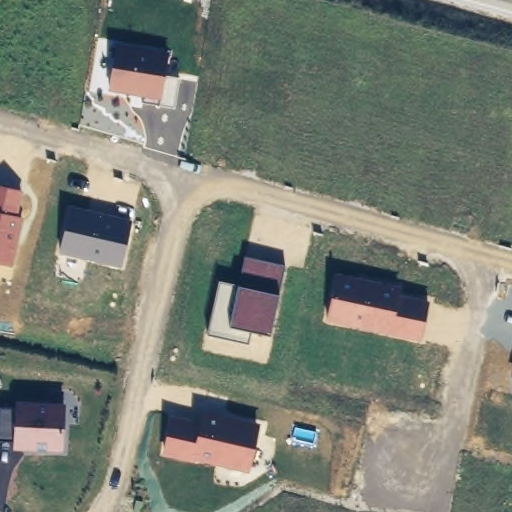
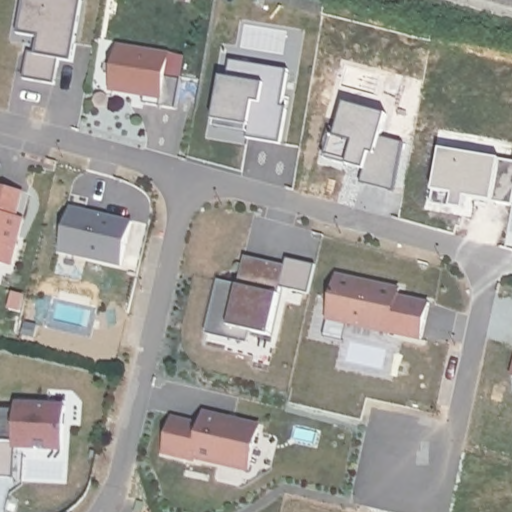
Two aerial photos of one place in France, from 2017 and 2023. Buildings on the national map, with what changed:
new [(26,0),(80,0),(71,57),(63,56),(59,81),(27,75),(32,48),(39,49),(42,34),(21,31),(26,0)]
unchanged [(116,42),(169,52),(166,77),(180,79),(175,108),(144,102),(144,96),(109,90),(116,42)]
new [(287,69),(281,106),(286,107),(280,142),(247,137),(250,125),(214,120),(221,78),(228,79),(231,60),(287,69)]
new [(325,140),(329,141),(335,107),(383,115),(379,138),(402,142),(394,191),(359,185),(362,167),(346,164),(345,169),(321,165),(325,140)]
new [(439,147),(512,159),(512,198),(511,204),(464,196),(462,208),(429,202),(439,147)]
unchanged [(17,216),(23,218),(12,267),(0,264),(0,186),(24,191),(17,216)]
unchanged [(70,206),(132,221),(122,268),(59,253),(70,206)]
unchanged [(285,266),(271,334),(251,330),(247,344),(207,334),(221,281),(238,285),(245,257),(285,266)]
new [(286,259),(315,264),(309,294),(280,288),(285,266),(286,259)]
unchanged [(401,287),(400,295),(430,302),(422,341),(325,320),(337,273),(401,287)]
unchanged [(510,376),(512,369),(512,377),(510,376)]
unchanged [(12,450),(12,440),(0,439),(0,411),(14,411),(16,400),(66,402),(63,452),(12,450)]
unchanged [(250,472),(162,454),(172,415),(201,421),(204,410),(260,423),(250,472)]

